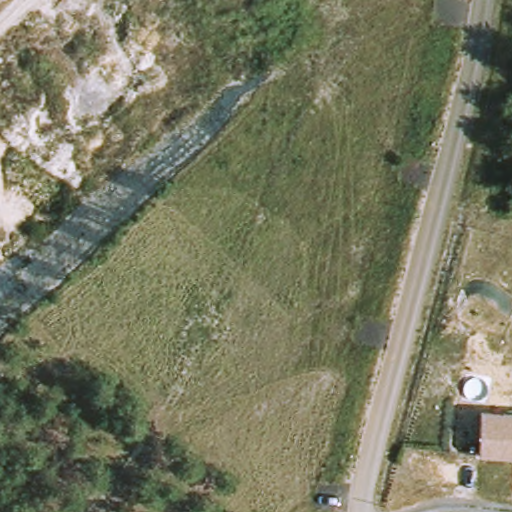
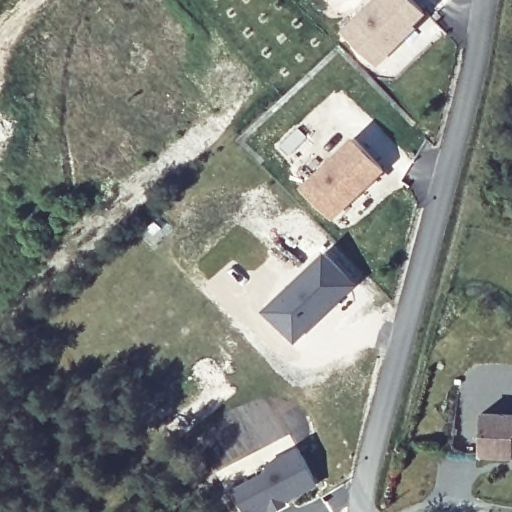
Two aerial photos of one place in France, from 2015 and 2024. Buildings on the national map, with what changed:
new [(414,23),(417,26),(377,66),(342,30),(373,0),(415,0),(425,11),(414,23)]
new [(354,135),(385,168),(333,219),(301,186),(354,135)]
new [(325,251),(354,281),(294,338),(266,308),(325,251)]
unchanged [(512,456),(478,456),(478,413),(512,414),(512,456)]
new [(232,488),(268,468),(266,463),(299,446),(319,484),(286,501),(288,504),(273,512),(272,512),(270,510),(266,512),(245,512),(232,488)]

